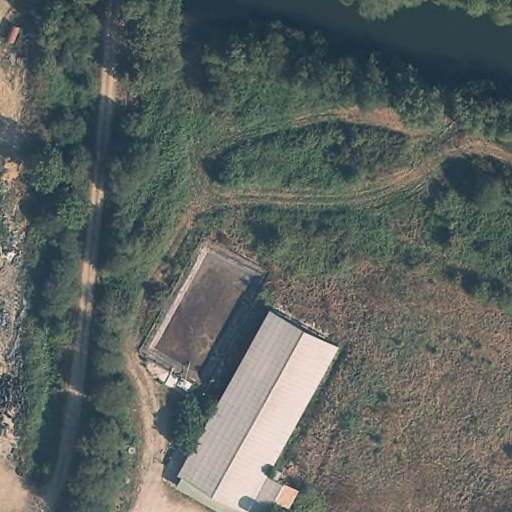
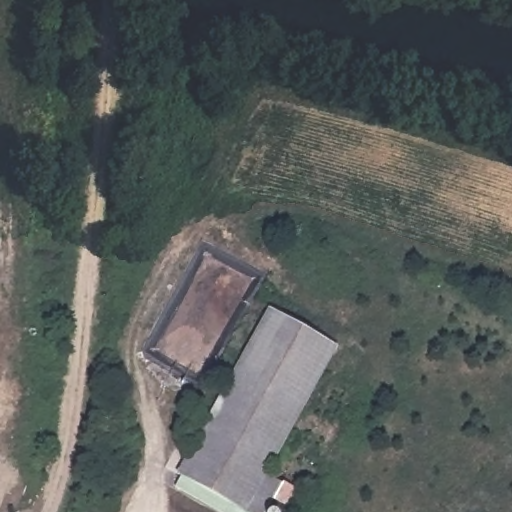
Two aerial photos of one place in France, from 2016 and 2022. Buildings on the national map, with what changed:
unchanged [(282,484),(267,512),(221,512),(171,484),(270,309),(335,346),(265,474),(282,484)]

